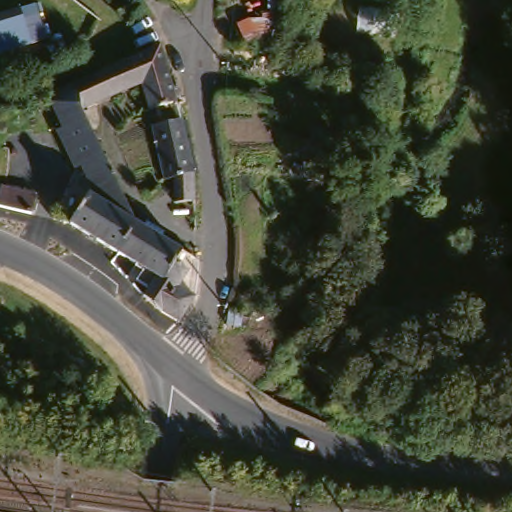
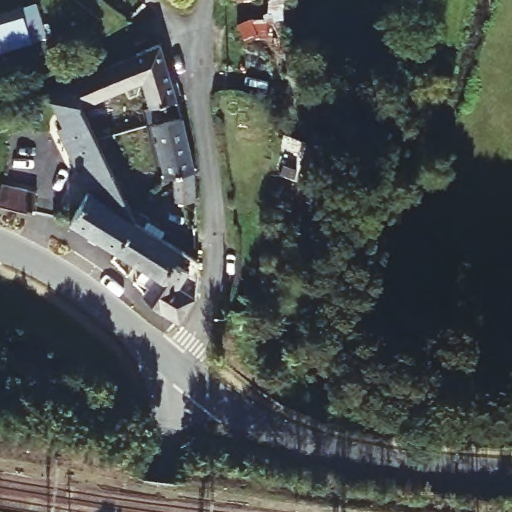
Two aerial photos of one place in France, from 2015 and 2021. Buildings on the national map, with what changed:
unchanged [(24,4),(34,37),(0,47),(0,11),(24,4)]
unchanged [(271,9),(278,25),(247,42),(237,25),(271,9)]
unchanged [(447,12),(446,36),(444,36),(439,36),(431,35),(432,10),(438,11),(447,12)]
unchanged [(136,56),(159,45),(176,101),(151,109),(144,82),(136,56)]
unchanged [(71,84),(136,56),(144,82),(82,110),(71,84)]
unchanged [(71,84),(82,110),(138,224),(118,254),(71,223),(90,192),(85,182),(89,180),(64,127),(48,95),(71,84)]
unchanged [(6,142),(0,119),(0,107),(48,95),(64,127),(6,142)]
unchanged [(165,176),(154,122),(181,116),(186,133),(193,168),(193,172),(195,199),(175,200),(173,175),(165,176)]
unchanged [(327,135),(319,177),(285,172),(293,128),(327,135)]
unchanged [(36,197),(31,219),(0,211),(0,198),(2,191),(36,197)]
unchanged [(166,285),(156,278),(149,290),(137,282),(144,270),(118,254),(138,224),(142,217),(149,221),(147,224),(153,228),(151,232),(183,254),(166,285)]
unchanged [(145,296),(149,290),(156,278),(166,285),(183,254),(198,263),(196,298),(181,323),(143,297),(145,296)]

